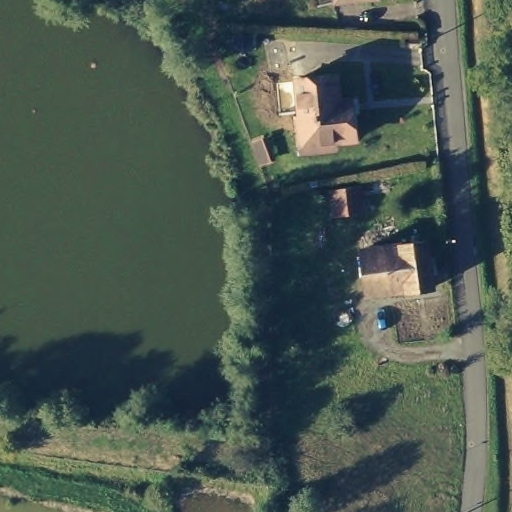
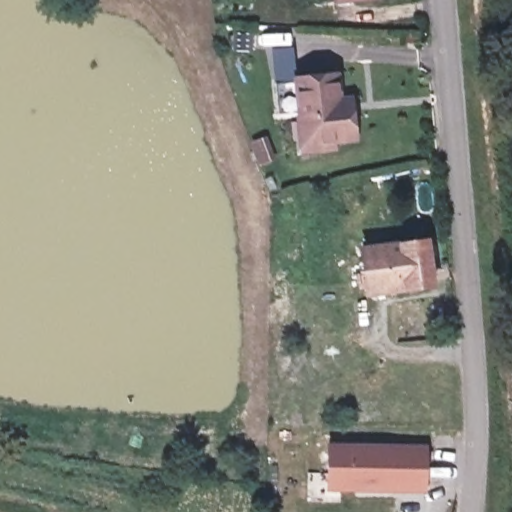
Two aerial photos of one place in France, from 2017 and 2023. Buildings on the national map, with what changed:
unchanged [(292,109),(287,69),(327,65),(330,90),(342,90),(343,102),(345,129),(323,131),(324,139),(302,140),(295,141),(292,109)]
unchanged [(365,211),(332,216),(327,191),(362,186),(365,211)]
unchanged [(403,281),(403,280),(363,285),(357,240),(422,231),(424,247),(430,246),(432,261),(426,262),(428,277),(403,281)]
new [(323,445),(422,446),(422,485),(391,484),(390,490),(322,489),(323,445)]

